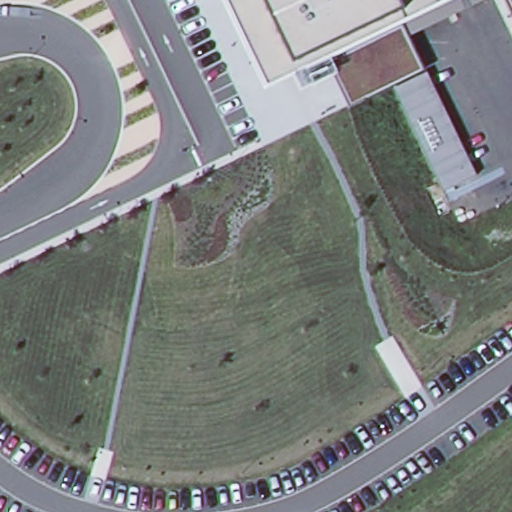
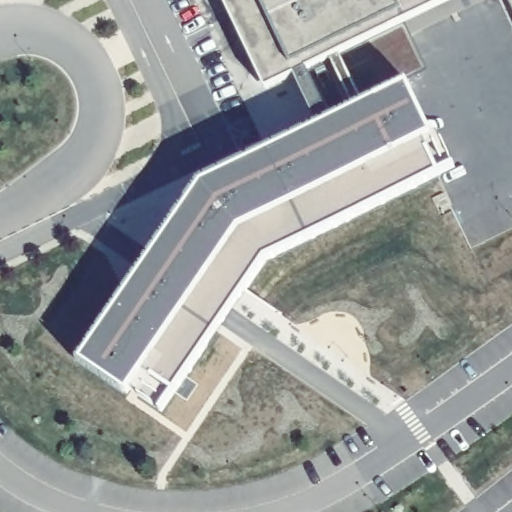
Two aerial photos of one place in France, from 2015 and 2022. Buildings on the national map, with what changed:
unchanged [(448,19),(411,37),(412,40),(426,70),(351,106),(335,65),(332,59),(300,75),(266,92),(263,85),(240,35),(223,0),(486,0),(448,19)]
unchanged [(506,0),(512,0),(512,13),(506,0)]
new [(331,59),(332,59),(335,65),(351,106),(403,81),(431,136),(421,140),(425,147),(441,140),(455,169),(437,175),(368,209),(375,220),(273,267),(264,285),(252,276),(245,288),(248,291),(191,380),(196,385),(185,399),(174,390),(160,409),(156,419),(73,368),(80,358),(71,353),(96,315),(107,322),(114,311),(107,306),(157,231),(165,237),(201,185),(320,127),(297,76),(331,59)]

